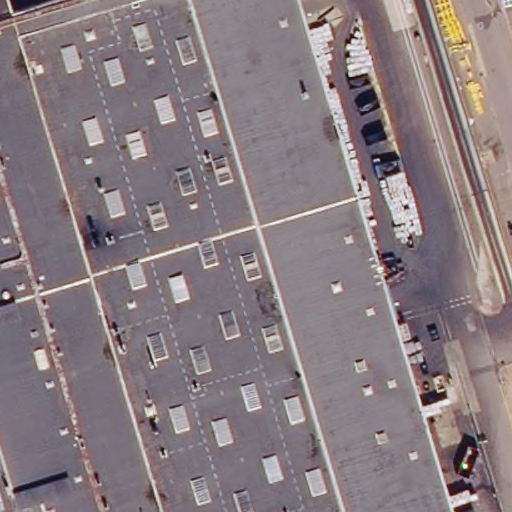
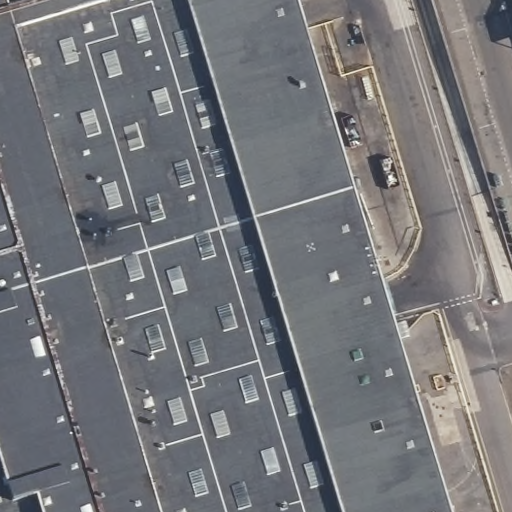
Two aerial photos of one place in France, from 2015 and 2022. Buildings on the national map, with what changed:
unchanged [(381,289),(437,476),(448,512),(0,512),(0,0),(295,0),(304,32),(381,289)]

